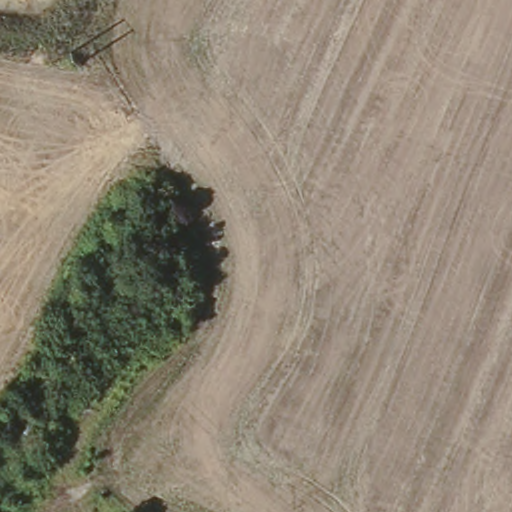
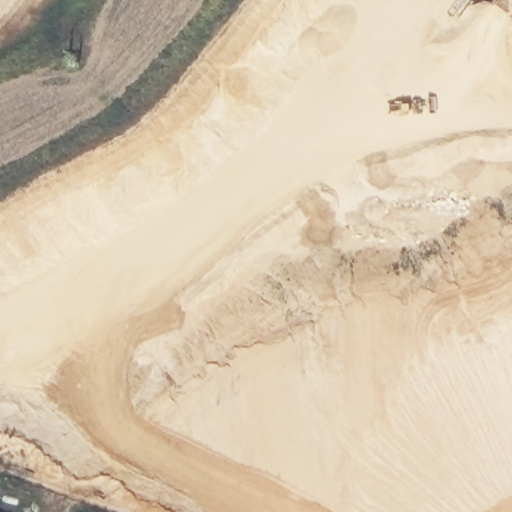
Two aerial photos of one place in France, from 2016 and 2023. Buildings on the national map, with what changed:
unchanged [(186,306),(179,324),(164,318),(173,301),(186,306)]
unchanged [(0,512),(0,506),(10,512),(0,512)]

